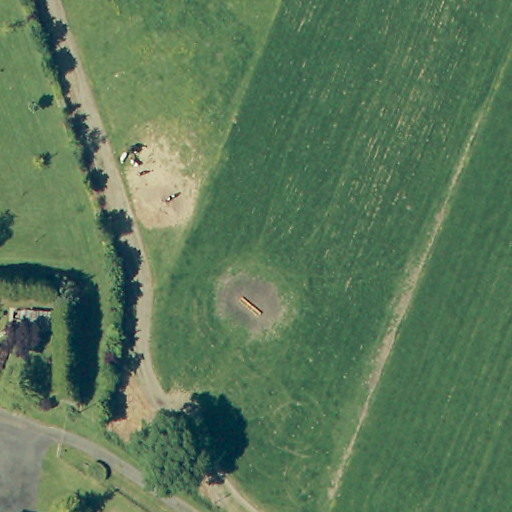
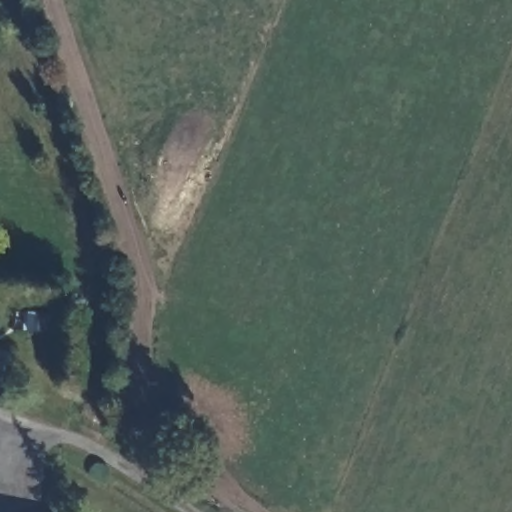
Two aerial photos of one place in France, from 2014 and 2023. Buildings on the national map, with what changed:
unchanged [(50,316),(50,335),(25,334),(27,314),(50,316)]
unchanged [(0,378),(0,354),(9,358),(0,378)]

